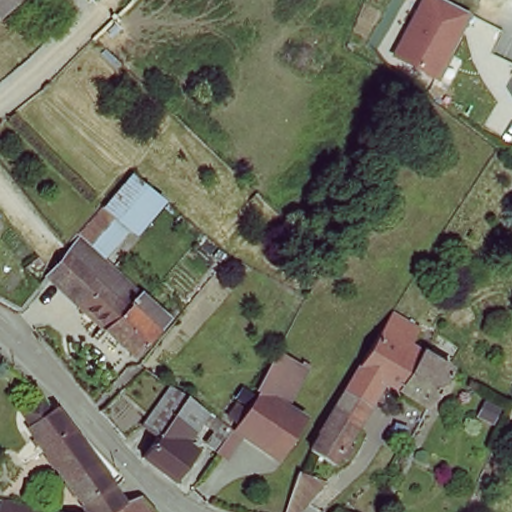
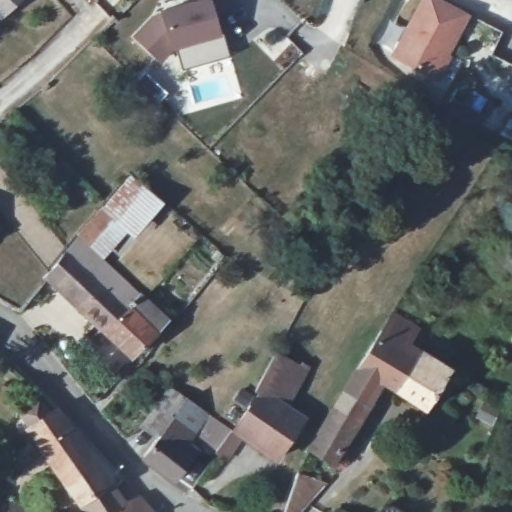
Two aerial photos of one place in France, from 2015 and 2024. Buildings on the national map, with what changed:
unchanged [(10,14),(8,13),(0,4),(0,0),(22,0),(10,14)]
new [(216,16),(220,35),(175,48),(160,63),(132,36),(150,15),(159,10),(192,0),(232,0),(216,16)]
unchanged [(441,79),(393,56),(421,0),(439,0),(475,20),(441,79)]
unchanged [(135,174),(167,201),(138,235),(132,230),(106,260),(82,236),(135,174)]
unchanged [(130,309),(70,251),(82,236),(106,260),(143,294),(130,309)]
unchanged [(130,309),(126,314),(107,333),(47,279),(56,267),(70,251),(130,309)]
unchanged [(168,317),(150,341),(134,357),(107,333),(126,314),(130,309),(143,294),(168,317)]
unchanged [(383,385),(345,444),(352,450),(344,462),(336,457),(330,466),(305,450),(338,399),(340,396),(343,391),(376,340),(392,316),(419,332),(417,335),(405,355),(417,363),(423,354),(452,375),(427,413),(383,385)]
unchanged [(287,401),(304,413),(277,455),(242,433),(227,458),(215,451),(232,425),(238,417),(258,382),(277,347),(299,361),(302,357),(310,362),(287,401)]
unchanged [(202,460),(185,483),(181,482),(150,460),(165,439),(148,425),(175,387),(207,409),(213,413),(201,430),(188,448),(202,460)]
unchanged [(157,509),(157,512),(88,512),(45,443),(32,423),(21,408),(38,395),(50,409),(52,407),(55,405),(88,446),(127,501),(139,495),(142,494),(157,509)]
unchanged [(329,481),(305,512),(289,512),(302,467),(329,481)]
unchanged [(1,506),(5,495),(42,505),(66,512),(0,512),(0,509),(1,506)]

